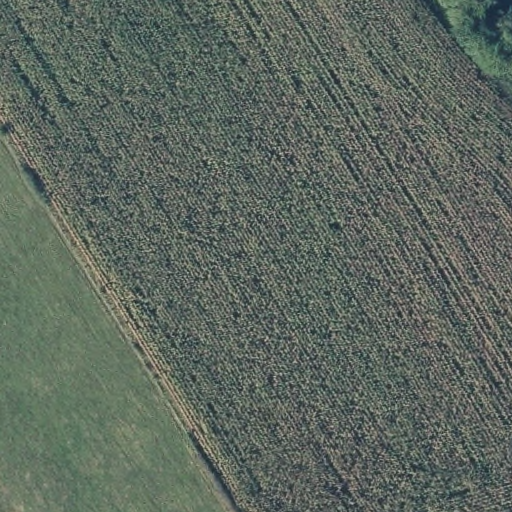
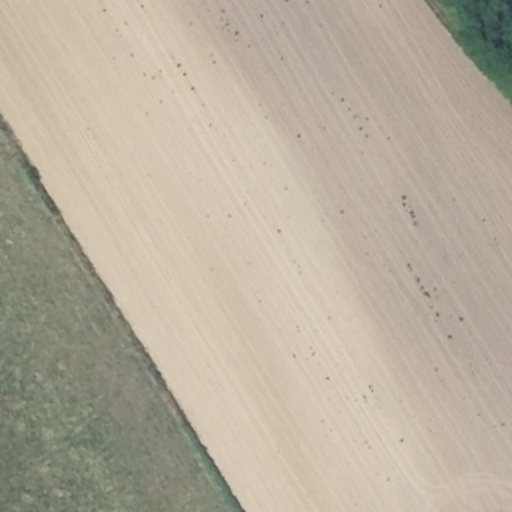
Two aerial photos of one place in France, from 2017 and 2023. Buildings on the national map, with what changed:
[]

